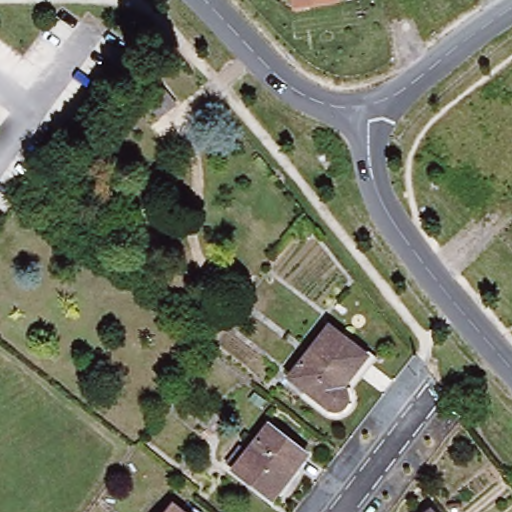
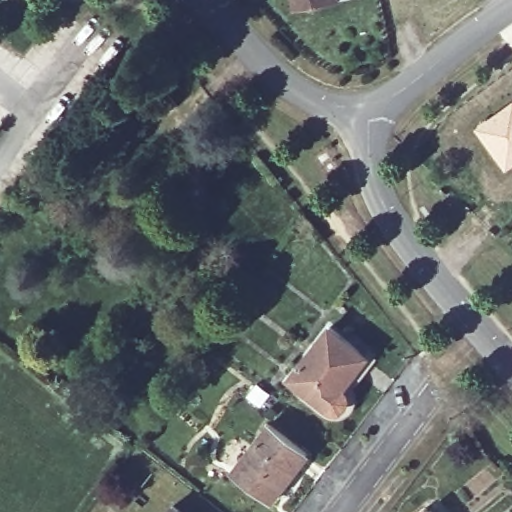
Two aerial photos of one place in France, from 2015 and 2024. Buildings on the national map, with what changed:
unchanged [(292,0),(339,0),(294,10),(292,0)]
new [(512,100),(512,167),(507,170),(474,127),(500,107),(512,100)]
unchanged [(341,390),(346,393),(348,397),(349,404),(345,410),(339,413),(333,412),(290,378),(330,327),(367,356),(341,390)]
unchanged [(271,499),(233,469),(268,425),(306,454),(271,499)]
unchanged [(181,512),(166,512),(172,504),(181,512)]

